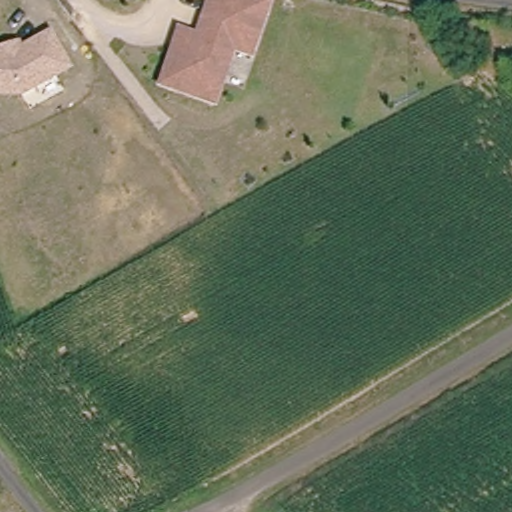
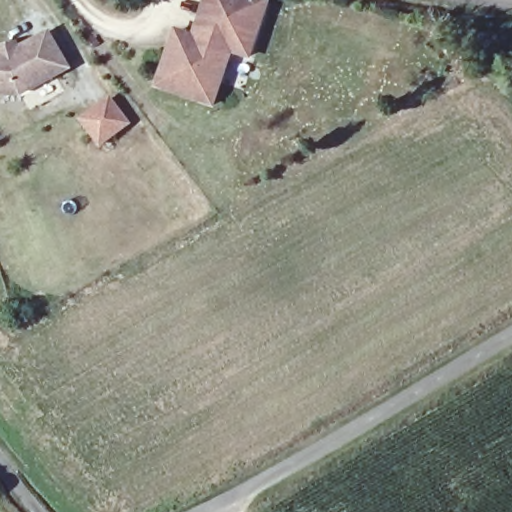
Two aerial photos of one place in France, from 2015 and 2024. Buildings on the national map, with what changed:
unchanged [(269,3),(250,59),(232,52),(214,106),(159,87),(173,45),(177,33),(195,39),(208,0),(260,0),(269,3)]
unchanged [(70,71),(20,95),(0,94),(0,54),(3,54),(2,49),(18,45),(19,51),(50,35),(70,71)]
new [(107,96),(127,122),(113,133),(98,144),(78,119),(94,107),(107,96)]

